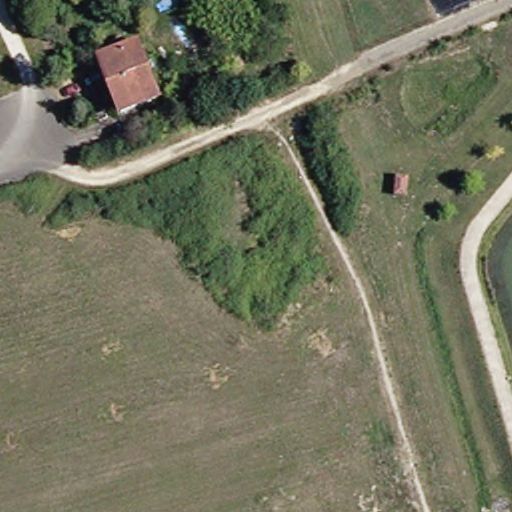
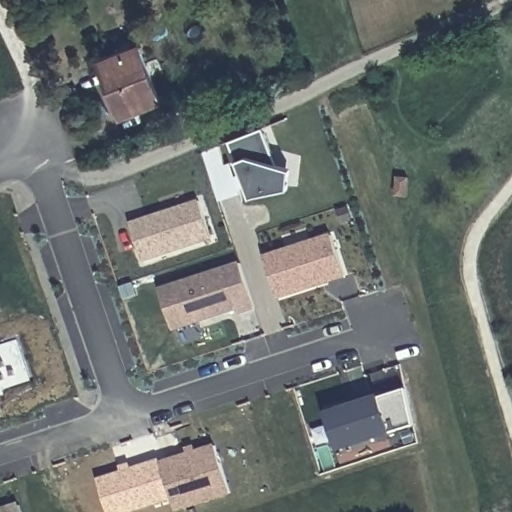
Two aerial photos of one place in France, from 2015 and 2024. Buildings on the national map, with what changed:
unchanged [(122,114),(112,89),(115,88),(104,61),(139,47),(159,100),(122,114)]
new [(263,127),(284,183),(251,196),(229,140),(263,127)]
new [(241,191),(219,198),(210,170),(204,150),(219,145),(226,164),(231,162),(241,191)]
unchanged [(397,177),(409,178),(408,197),(396,196),(397,177)]
new [(199,201),(211,238),(144,261),(131,223),(199,201)]
new [(333,237),(345,276),(278,298),(265,259),(333,237)]
new [(240,264),(255,307),(239,313),(237,308),(174,329),(161,290),(240,264)]
new [(31,380),(3,389),(5,394),(0,395),(0,345),(18,339),(31,380)]
new [(414,426),(341,449),(329,413),(349,407),(406,389),(414,426)]
new [(347,401),(357,398),(359,404),(349,407),(347,401)]
new [(187,449),(195,446),(197,452),(216,446),(231,493),(177,510),(161,463),(189,454),(187,449)]
new [(122,471),(120,466),(132,462),(133,467),(159,460),(161,463),(173,499),(136,512),(109,512),(98,478),(122,471)]
new [(19,512),(0,512),(0,509),(17,504),(19,512)]

